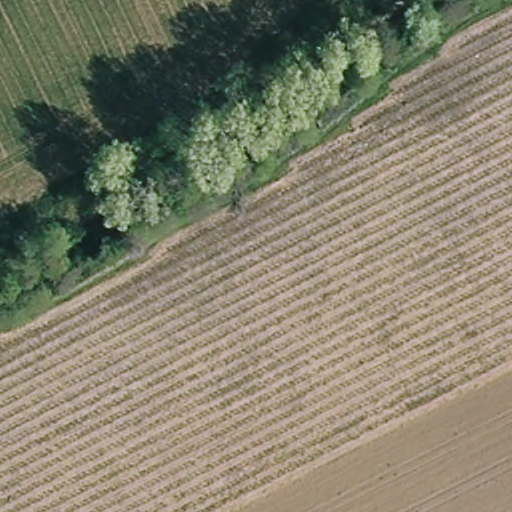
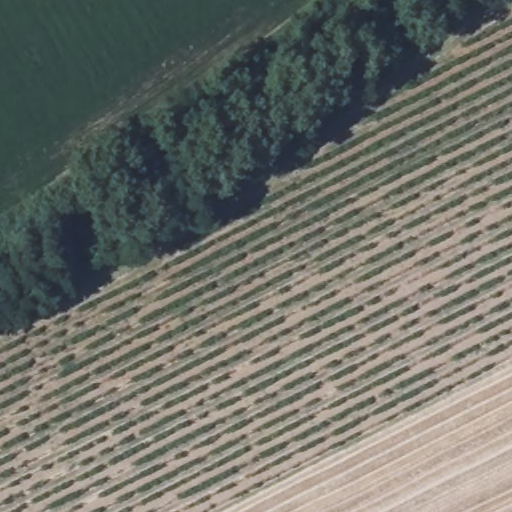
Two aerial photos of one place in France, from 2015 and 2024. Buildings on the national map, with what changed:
[]

